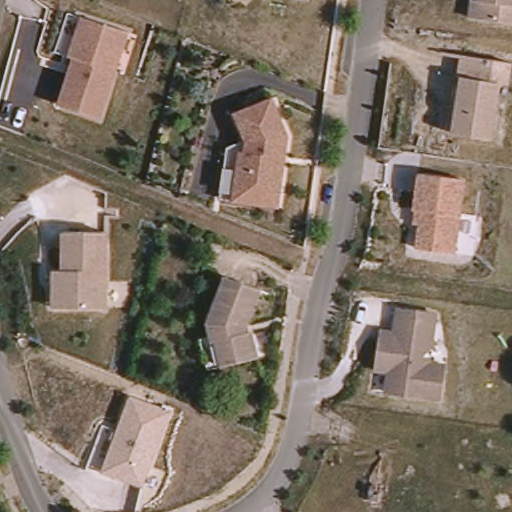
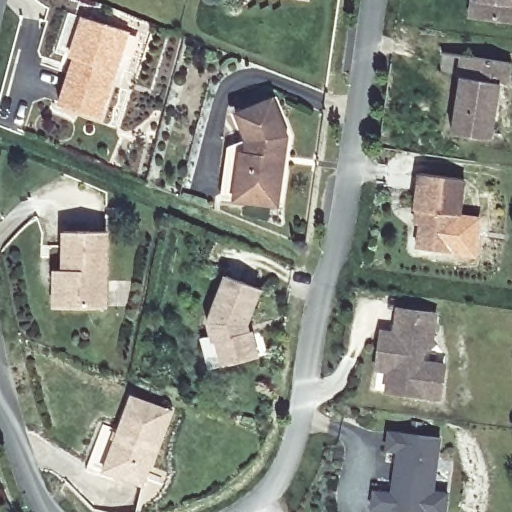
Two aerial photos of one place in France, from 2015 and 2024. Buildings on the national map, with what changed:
unchanged [(472,0),(512,0),(512,18),(470,14),(472,0)]
unchanged [(81,17),(127,29),(101,112),(61,100),(81,17)]
unchanged [(493,141),(455,134),(465,78),(462,77),(442,74),(446,54),(465,57),(512,64),(512,86),(502,84),(493,141)]
unchanged [(231,144),(249,136),(238,109),(275,95),(291,132),(288,149),(286,167),(281,202),(236,197),(224,195),(231,144)]
unchanged [(415,206),(412,206),(418,170),(462,177),(451,250),(415,244),(418,221),(413,220),(415,206)]
unchanged [(105,307),(56,307),(57,272),(65,273),(66,232),(106,236),(105,307)]
unchanged [(204,335),(215,332),(212,319),(229,272),(262,285),(249,321),(251,328),(254,327),(260,353),(226,362),(211,366),(204,335)]
unchanged [(442,362),(437,396),(384,388),(387,367),(380,367),(375,360),(379,333),(386,328),(396,330),(397,323),(393,323),(394,319),(396,305),(434,310),(430,333),(430,336),(433,340),(420,350),(419,358),(442,362)]
unchanged [(102,424),(118,430),(130,395),(167,410),(142,482),(87,463),(102,424)]
new [(372,492),(390,495),(395,452),(384,451),(387,433),(437,440),(428,512),(388,512),(369,510),(372,492)]

